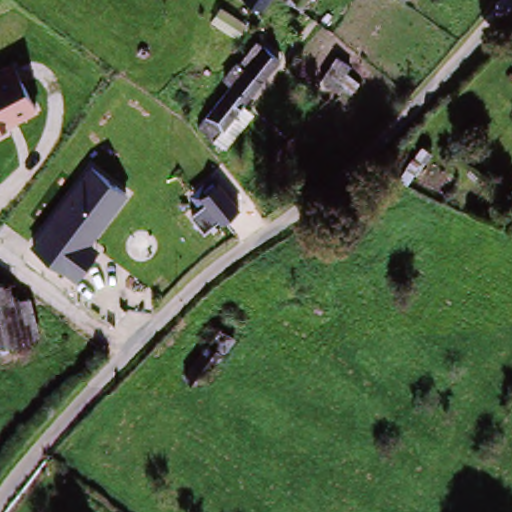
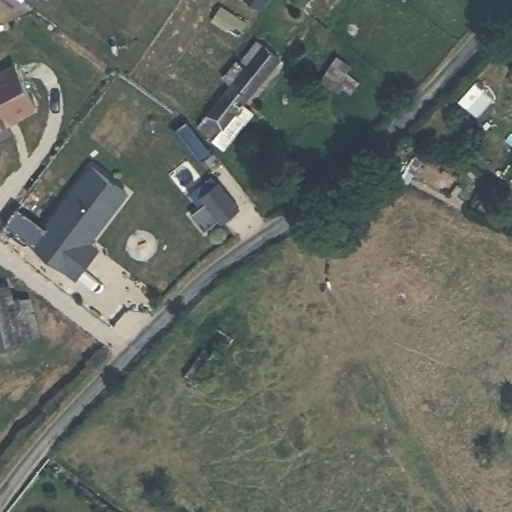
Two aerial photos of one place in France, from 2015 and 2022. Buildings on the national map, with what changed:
unchanged [(262,7),(251,0),(266,0),(262,7)]
unchanged [(227,148),(215,139),(215,140),(200,127),(235,86),(227,81),(240,65),(246,70),(265,46),(281,60),(245,104),(254,112),(227,148)]
unchanged [(0,71),(14,64),(37,109),(0,129),(0,71)]
unchanged [(130,193),(94,242),(100,248),(75,279),(30,246),(94,164),(130,193)]
unchanged [(190,211),(198,207),(190,195),(204,185),(209,190),(219,182),(238,207),(220,224),(216,219),(204,228),(190,211)]
unchanged [(0,345),(0,283),(7,281),(22,343),(1,349),(0,345)]
unchanged [(195,356),(235,316),(245,327),(207,366),(195,356)]

